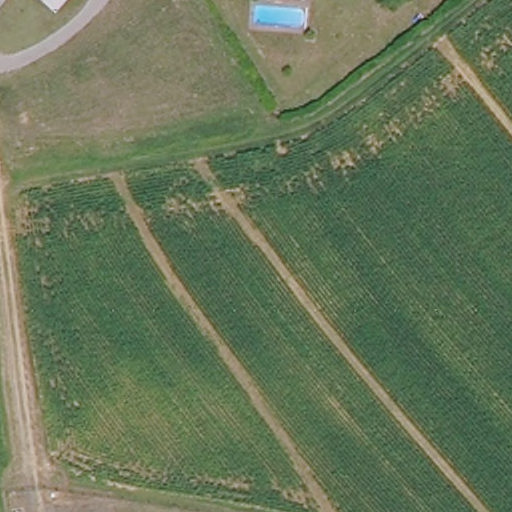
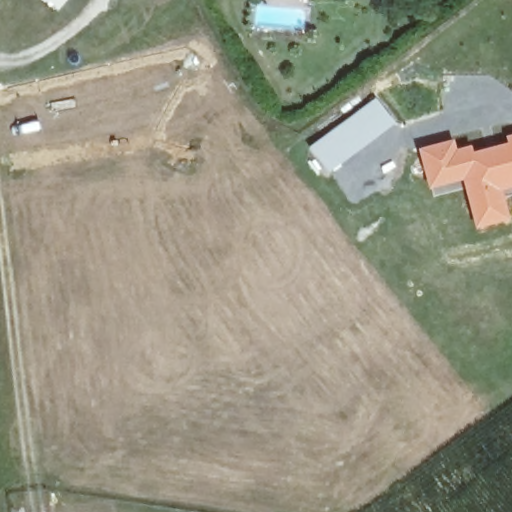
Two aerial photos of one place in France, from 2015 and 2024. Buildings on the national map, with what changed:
new [(396,123),(329,175),(309,148),(376,97),(396,123)]
new [(457,149),(472,145),(473,152),(508,143),(507,136),(512,135),(512,194),(504,195),(511,222),(477,230),(464,181),(430,189),(420,148),(453,140),(457,149)]

